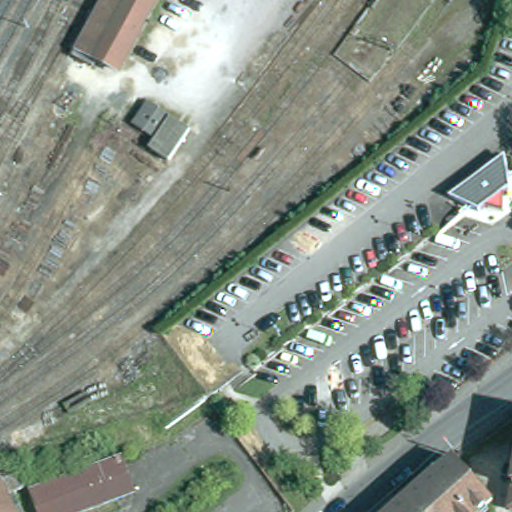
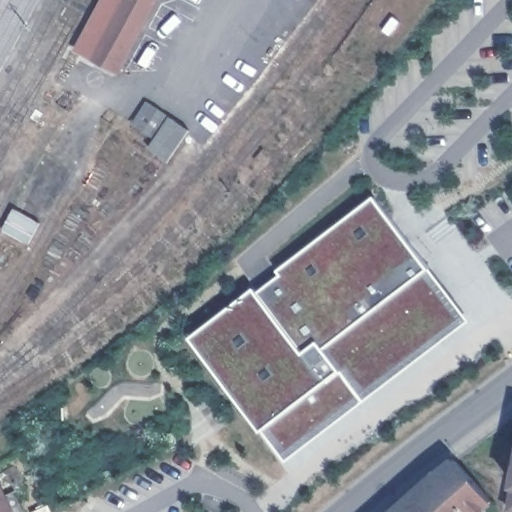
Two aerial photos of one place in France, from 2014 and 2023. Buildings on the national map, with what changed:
unchanged [(115,79),(100,70),(106,56),(80,41),(102,0),(157,0),(115,79)]
demolished [(455,194),(465,187),(500,160),(511,152),(512,155),(512,190),(510,192),(509,209),(493,204),(485,209),(474,204),(456,196),(455,194)]
new [(285,460),(263,429),(191,337),(255,287),(258,291),(282,274),(278,269),(374,198),(430,269),(469,321),(363,400),(285,460)]
demolished [(133,491),(78,512),(43,512),(34,491),(122,458),(133,491)]
unchanged [(460,458),(498,500),(485,512),(396,512),(436,477),(460,458)]
unchanged [(18,512),(0,512),(0,476),(18,512)]
unchanged [(512,499),(512,509),(510,509),(512,499)]

